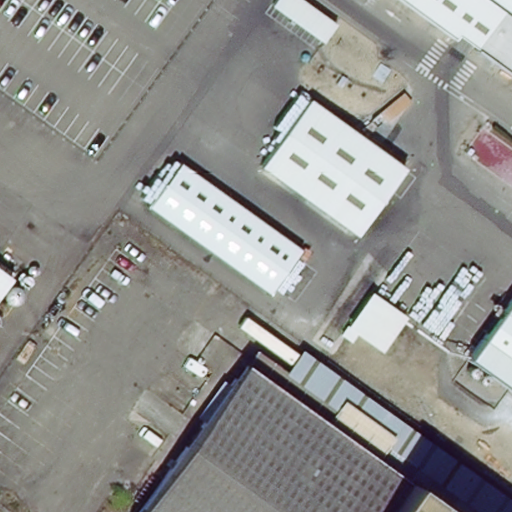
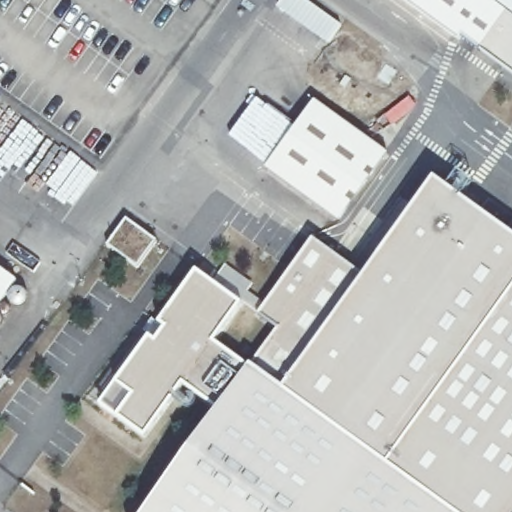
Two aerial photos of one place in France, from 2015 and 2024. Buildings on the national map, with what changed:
unchanged [(305,0),(340,25),(326,44),(275,7),(280,0),(305,0)]
unchanged [(458,40),(403,0),(512,0),(512,73),(461,36),(458,40)]
unchanged [(317,101),(414,170),(365,237),(347,225),(269,168),(317,101)]
demolished [(188,163),(311,251),(279,296),(156,208),(188,163)]
new [(262,319),(279,296),(311,251),(317,243),(337,256),(355,230),(365,237),(395,196),(416,212),(437,185),(512,240),(512,497),(308,348),(280,384),(257,367),(283,335),(262,319)]
new [(128,212),(158,233),(139,260),(109,238),(128,212)]
unchanged [(17,274),(0,298),(0,262),(17,274)]
new [(184,391),(147,443),(100,410),(151,340),(156,346),(166,331),(159,328),(197,275),(243,306),(215,346),(243,367),(212,410),(184,391)]
demolished [(472,364),(512,307),(512,393),(472,364)]
unchanged [(243,367),(248,360),(257,367),(280,384),(308,348),(512,497),(512,512),(140,512),(212,410),(243,367)]

